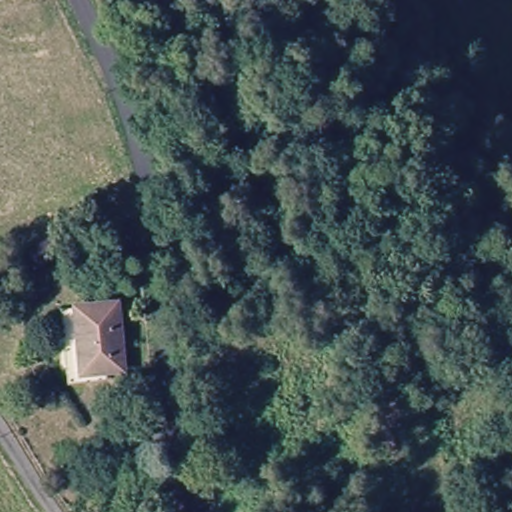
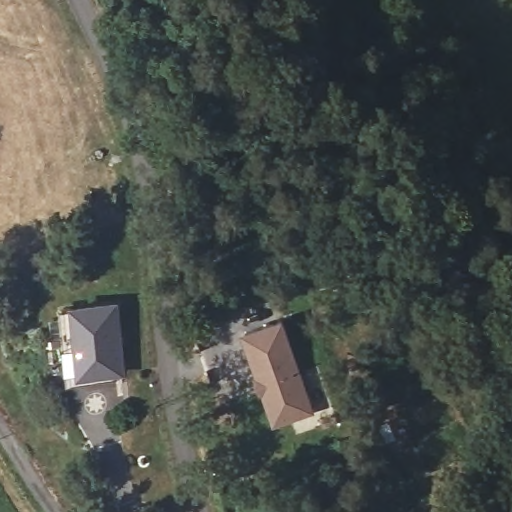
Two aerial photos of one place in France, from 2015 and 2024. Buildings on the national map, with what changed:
unchanged [(68,318),(110,313),(117,382),(76,386),(68,318)]
new [(282,323),(312,412),(275,425),(264,393),(261,394),(257,379),(259,379),(245,335),(282,323)]

